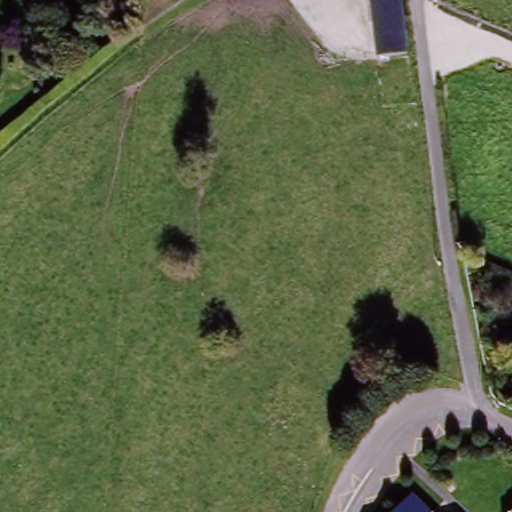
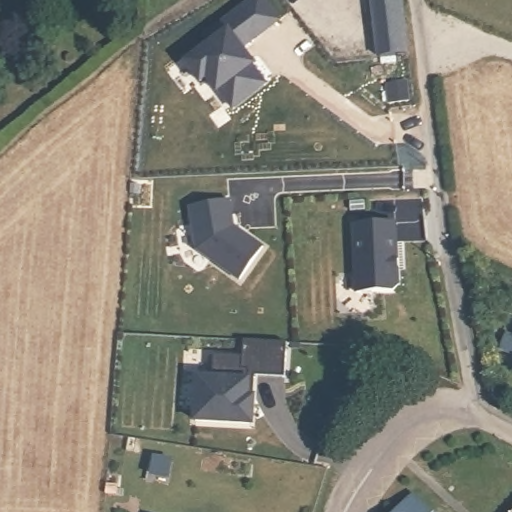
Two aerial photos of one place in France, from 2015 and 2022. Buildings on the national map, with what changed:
new [(282,23),(247,53),(255,64),(252,67),(265,83),(232,108),(217,91),(207,80),(202,84),(186,61),(208,41),(205,37),(255,0),(263,0),(282,23)]
unchanged [(405,54),(377,65),(370,0),(399,0),(399,2),(405,54)]
new [(236,229),(264,247),(240,281),(195,252),(190,205),(230,199),(236,229)]
new [(397,224),(400,287),(395,292),(356,294),(350,226),(397,224)]
new [(287,379),(256,377),(255,399),(255,427),(195,423),(195,375),(215,375),(215,354),(242,356),(243,343),(286,344),(287,379)]
unchanged [(425,512),(393,512),(407,496),(425,512)]
unchanged [(508,512),(512,508),(512,512),(508,512)]

